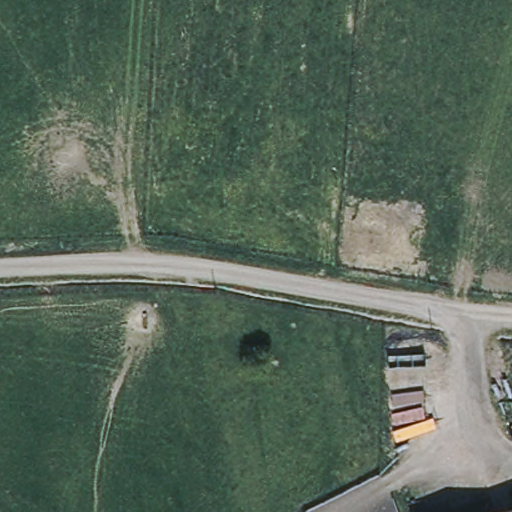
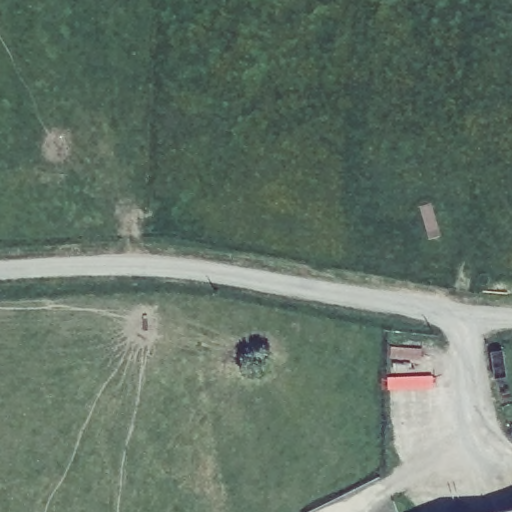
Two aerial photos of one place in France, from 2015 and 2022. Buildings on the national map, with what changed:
unchanged [(362,229),(365,204),(422,210),(417,262),(359,256),(362,229)]
unchanged [(512,512),(493,512),(493,511),(512,507),(512,512)]
unchanged [(493,512),(491,512),(493,511),(493,512)]

